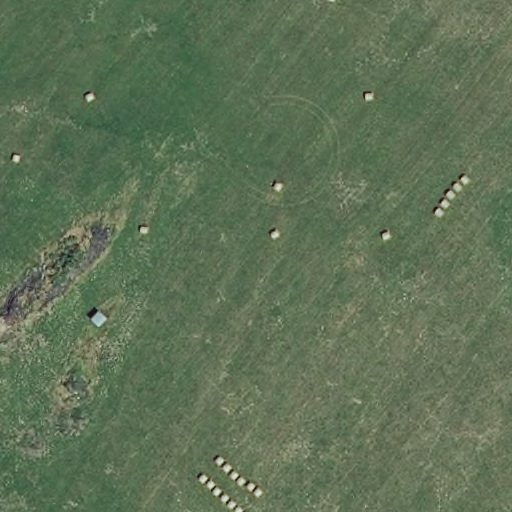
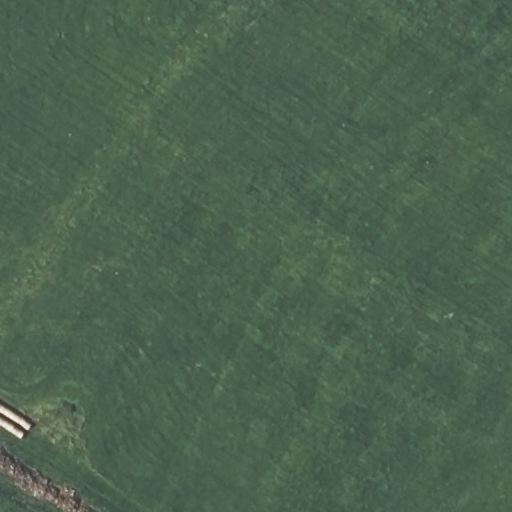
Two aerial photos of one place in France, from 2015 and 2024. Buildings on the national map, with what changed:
[]

